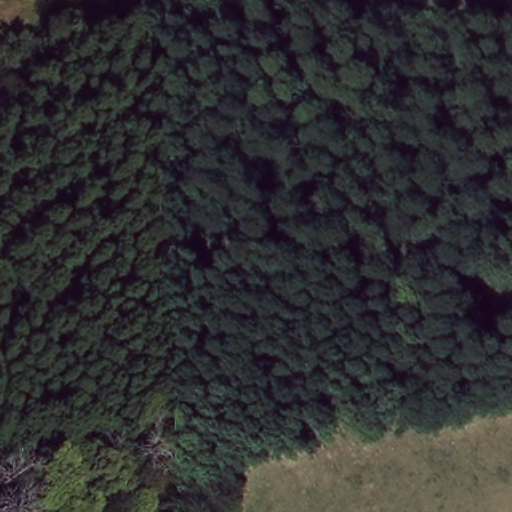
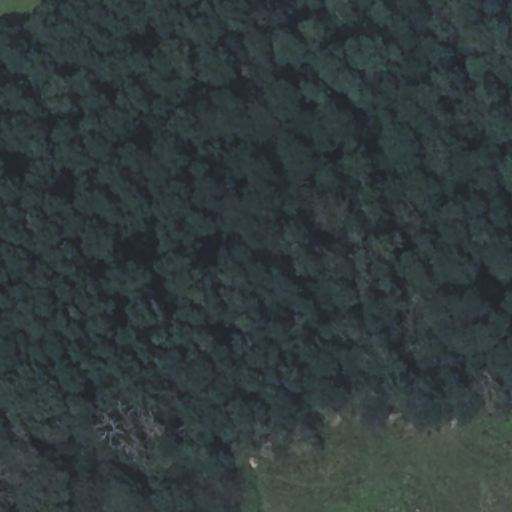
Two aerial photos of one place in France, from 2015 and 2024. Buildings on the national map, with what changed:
[]

